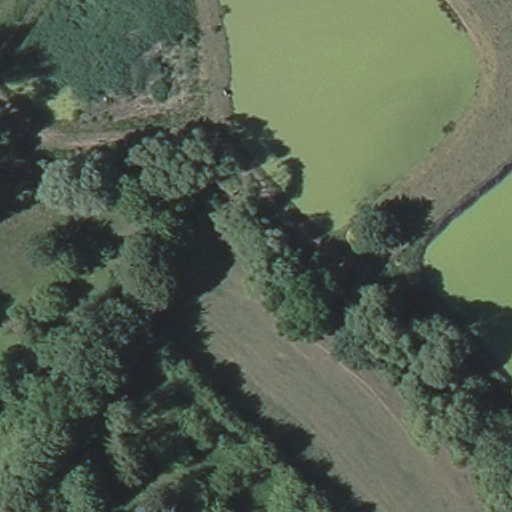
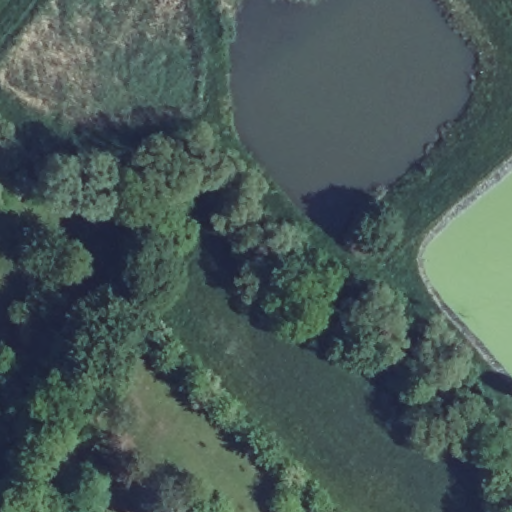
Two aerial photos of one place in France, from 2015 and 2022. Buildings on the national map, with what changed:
unchanged [(127,385),(115,377),(131,358),(143,367),(127,385)]

